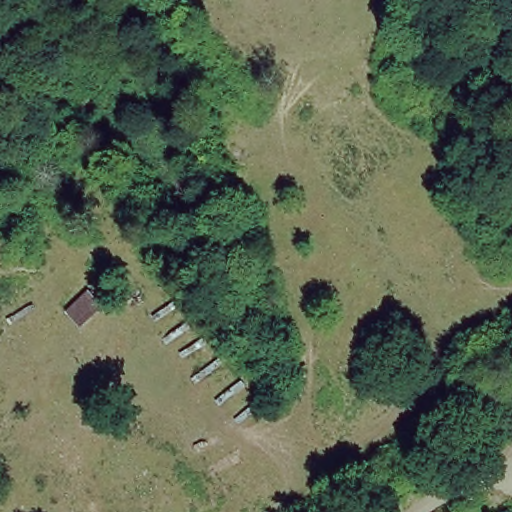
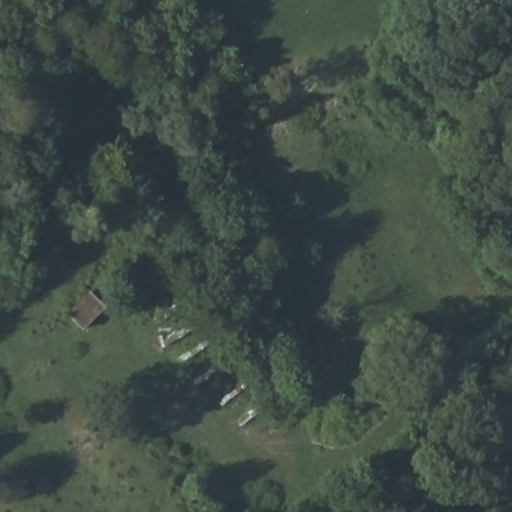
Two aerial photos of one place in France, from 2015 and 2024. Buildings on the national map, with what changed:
unchanged [(56,312),(78,289),(99,309),(76,332),(56,312)]

